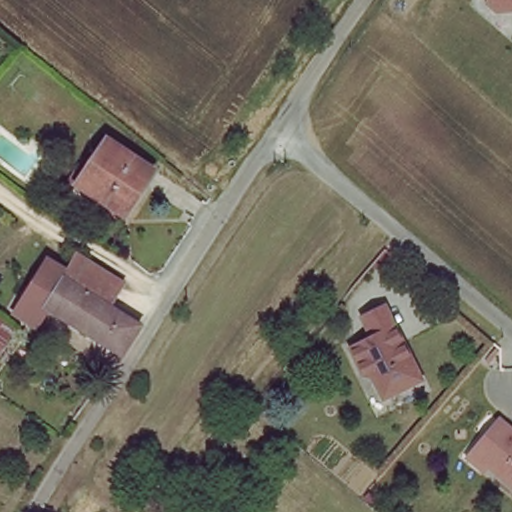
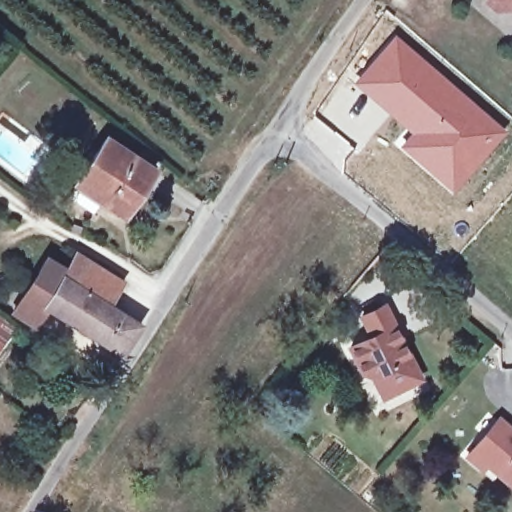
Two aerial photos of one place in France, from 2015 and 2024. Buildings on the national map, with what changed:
unchanged [(490,10),(480,0),(512,0),(512,4),(511,5),(490,10)]
new [(395,32),(505,129),(450,194),(397,146),(408,133),(352,84),(395,32)]
unchanged [(69,196),(77,183),(109,138),(156,170),(125,216),(102,200),(93,213),(69,196)]
unchanged [(74,259),(118,287),(101,312),(58,284),(63,277),(74,259)]
unchanged [(32,327),(20,320),(37,290),(30,286),(44,264),(63,277),(58,284),(44,307),(32,327)]
unchanged [(58,284),(101,312),(130,330),(116,353),(44,307),(58,284)]
unchanged [(3,300),(20,311),(10,334),(0,347),(0,304),(3,300)]
unchanged [(374,335),(364,315),(383,307),(418,377),(383,394),(373,374),(360,371),(350,348),(374,335)]
unchanged [(472,454),(499,423),(512,434),(512,487),(487,467),(483,472),(467,459),(472,454)]

